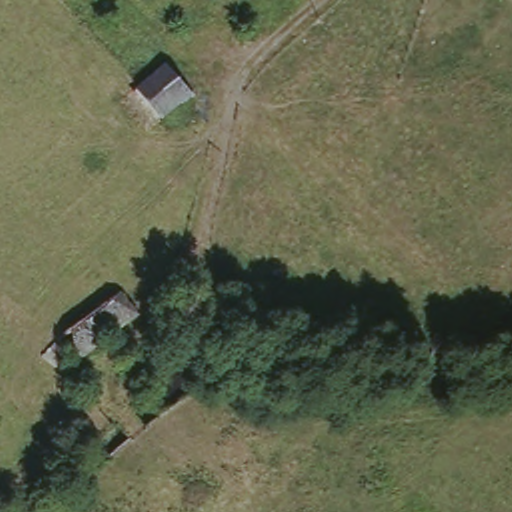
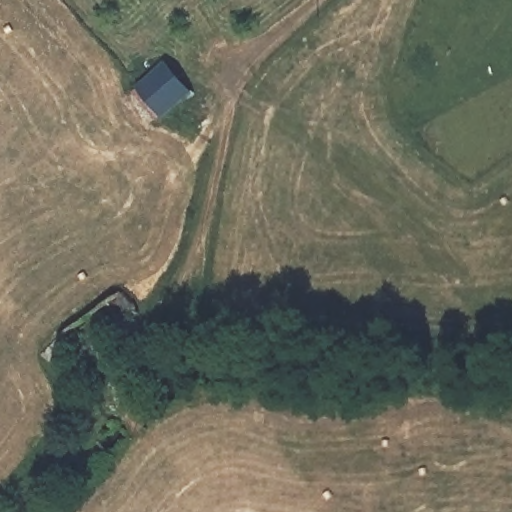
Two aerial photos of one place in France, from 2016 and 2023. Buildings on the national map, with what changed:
unchanged [(166,68),(191,97),(166,118),(164,122),(137,94),(139,90),(166,68)]
unchanged [(56,344),(114,292),(131,316),(75,367),(56,344)]

